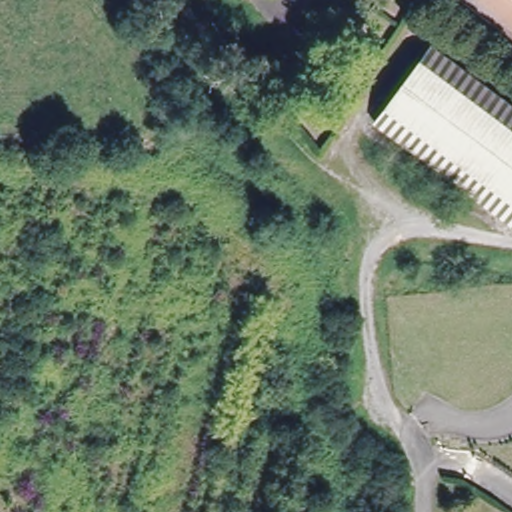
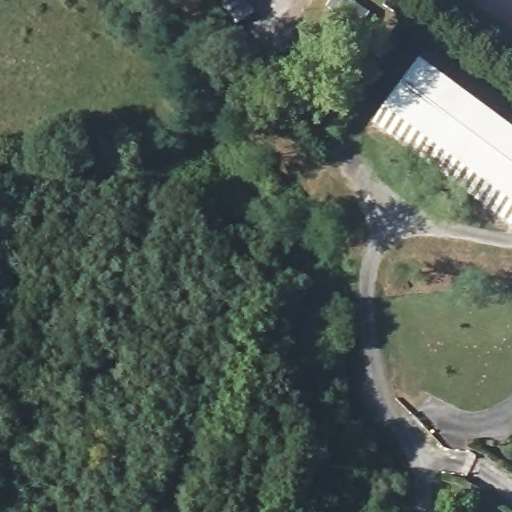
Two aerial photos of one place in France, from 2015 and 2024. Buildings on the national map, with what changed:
unchanged [(512,218),(376,124),(428,50),(512,108),(512,218)]

